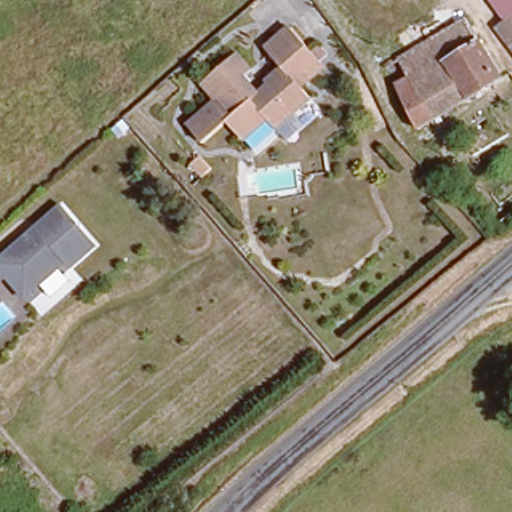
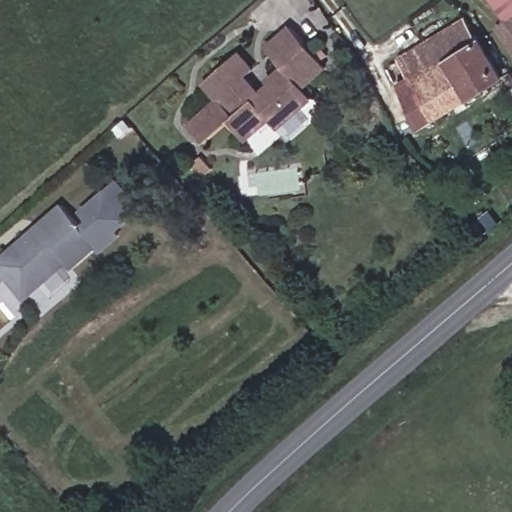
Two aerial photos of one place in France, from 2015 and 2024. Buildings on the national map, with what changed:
unchanged [(495,0),(512,0),(512,5),(504,11),(495,0)]
unchanged [(408,105),(398,94),(393,88),(414,69),(404,53),(462,10),(500,67),(447,109),(443,104),(422,123),(408,105)]
unchanged [(512,19),(512,41),(494,20),(504,11),(512,19)]
unchanged [(292,29),(319,57),(296,78),(311,94),(278,125),(269,116),(246,138),(231,122),(230,120),(206,142),(190,125),(216,101),(201,85),(235,54),(250,70),(244,75),(255,86),(259,91),(269,83),(266,79),(282,64),(274,56),(266,46),(279,34),(289,25),(292,29)]
new [(97,240),(74,215),(116,179),(141,209),(117,231),(120,234),(101,250),(95,243),(97,240)]
unchanged [(4,279),(0,274),(0,260),(61,202),(97,240),(73,263),(68,257),(42,282),(28,295),(9,274),(4,279)]

